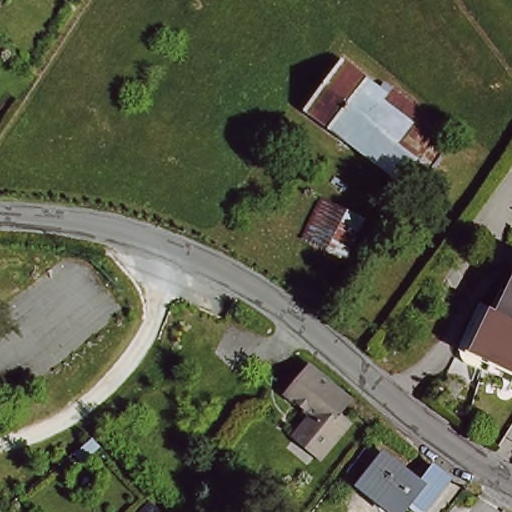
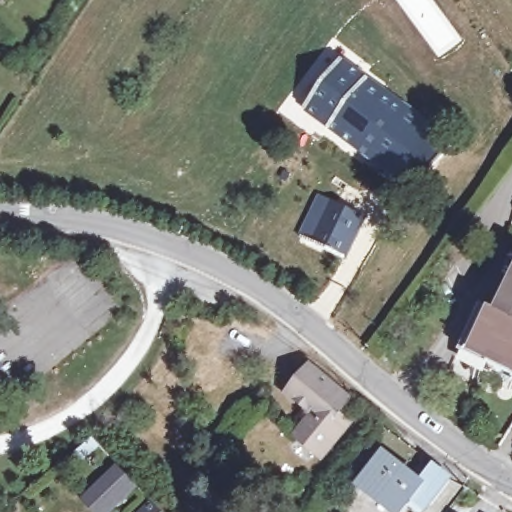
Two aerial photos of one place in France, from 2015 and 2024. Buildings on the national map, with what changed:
unchanged [(375,92),(377,89),(385,96),(387,93),(408,109),(404,114),(447,147),(412,196),(302,112),(338,64),(375,92)]
unchanged [(326,199),(335,205),(337,203),(337,201),(370,218),(350,256),(309,237),(326,199)]
unchanged [(472,348),(500,291),(509,294),(512,288),(512,368),(472,348)]
unchanged [(344,403),(333,417),(344,425),(315,462),(290,442),(307,419),(282,400),(304,372),(344,403)]
unchanged [(427,510),(415,500),(405,512),(399,512),(365,484),(387,456),(414,476),(420,468),(426,468),(434,473),(439,467),(454,478),(427,510)]
new [(139,488),(113,512),(106,512),(105,511),(105,512),(95,512),(83,499),(117,466),(139,488)]
unchanged [(145,493),(163,512),(139,512),(133,505),(145,493)]

